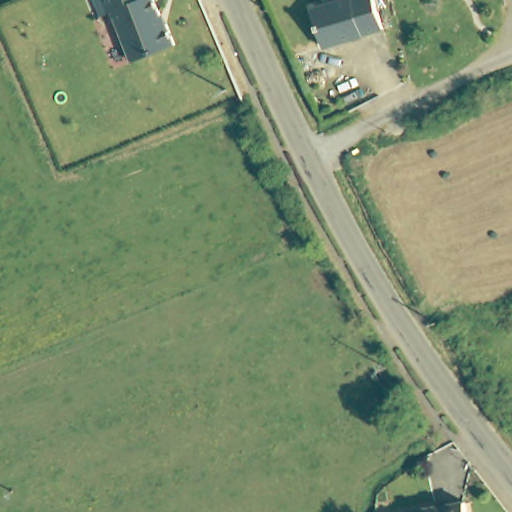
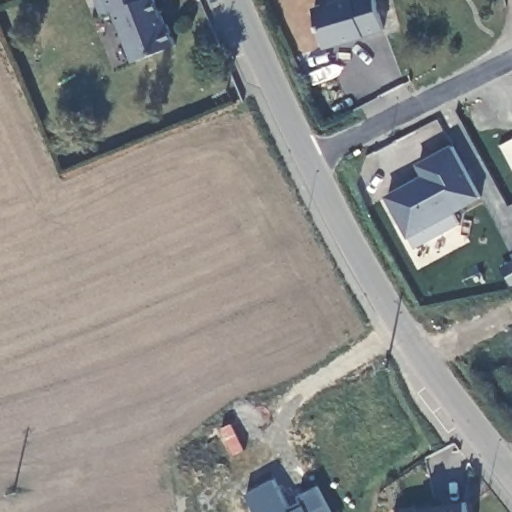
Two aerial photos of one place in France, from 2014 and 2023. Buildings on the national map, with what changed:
unchanged [(108,13),(100,16),(94,0),(155,0),(173,45),(133,63),(108,13)]
unchanged [(351,0),(373,0),(383,32),(324,50),(313,12),(351,0)]
new [(421,181),(415,169),(450,149),(478,201),(450,216),(456,227),(412,252),(384,201),(421,181)]
new [(290,509),(303,502),(298,493),(317,483),(334,512),(257,512),(246,492),(273,477),(290,509)]
unchanged [(417,512),(416,512),(466,507),(467,512),(417,512)]

